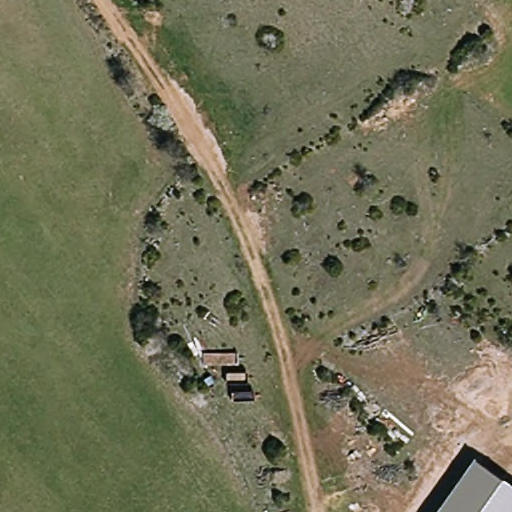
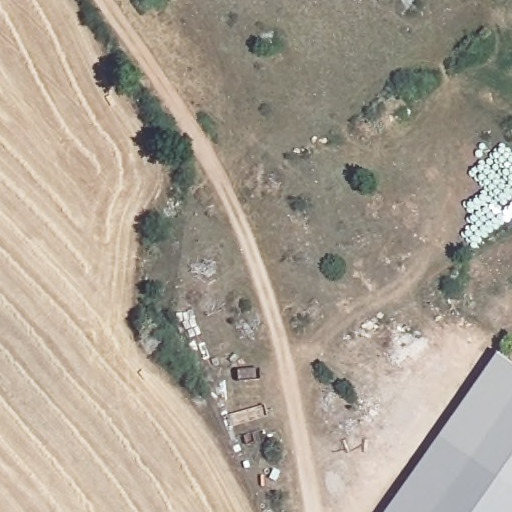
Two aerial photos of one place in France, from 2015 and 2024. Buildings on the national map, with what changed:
new [(442,437),(501,355),(512,363),(512,484),(476,459),(442,437)]
new [(390,512),(442,437),(476,459),(439,512),(390,512)]
unchanged [(512,484),(512,512),(439,512),(476,459),(512,484)]

